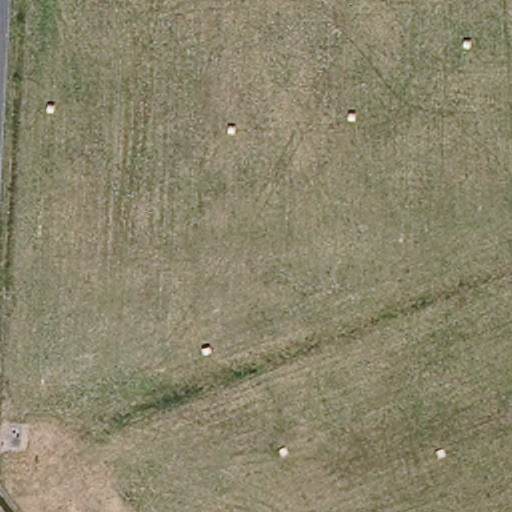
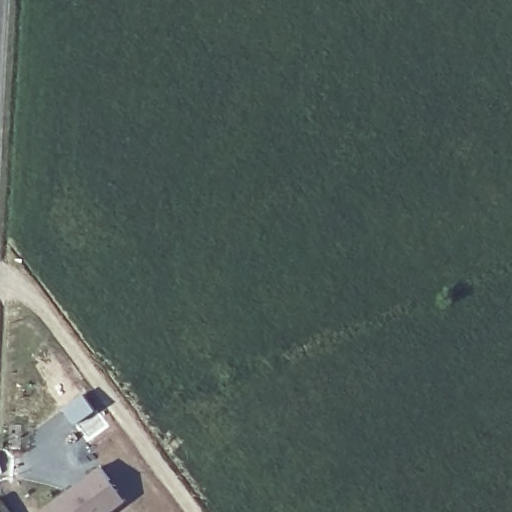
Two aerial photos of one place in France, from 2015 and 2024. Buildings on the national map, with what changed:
new [(83,395),(95,411),(75,426),(63,409),(83,395)]
new [(101,465),(125,498),(106,512),(43,512),(40,509),(101,465)]

